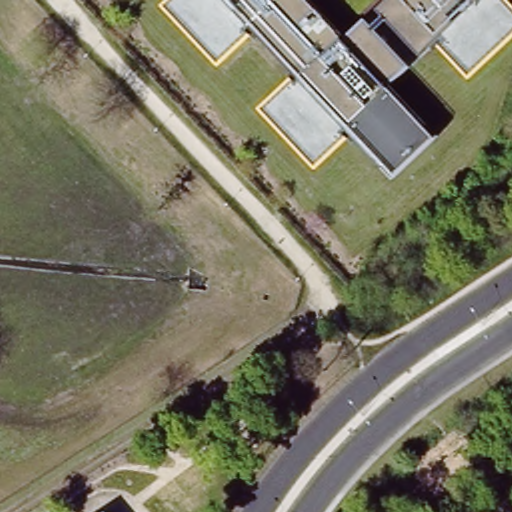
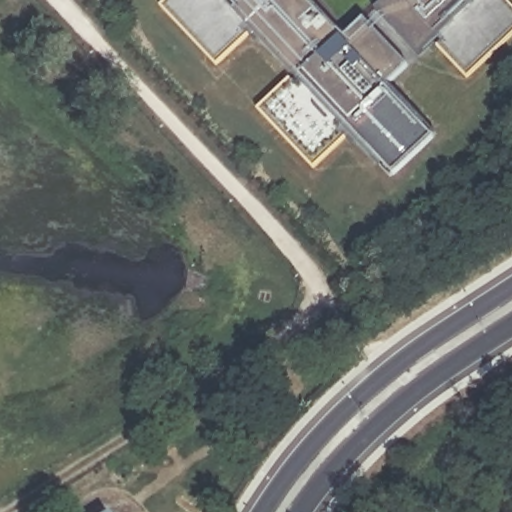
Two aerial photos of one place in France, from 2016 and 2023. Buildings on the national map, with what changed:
unchanged [(344,137),(309,171),(254,114),(295,78),(250,30),(212,67),(158,10),(167,0),(304,0),(342,41),(390,0),(495,0),(512,17),(512,36),(462,81),(432,47),(385,90),(430,141),(390,180),(344,137)]

